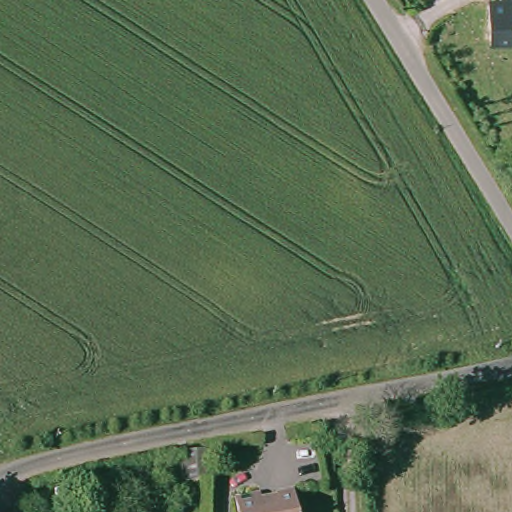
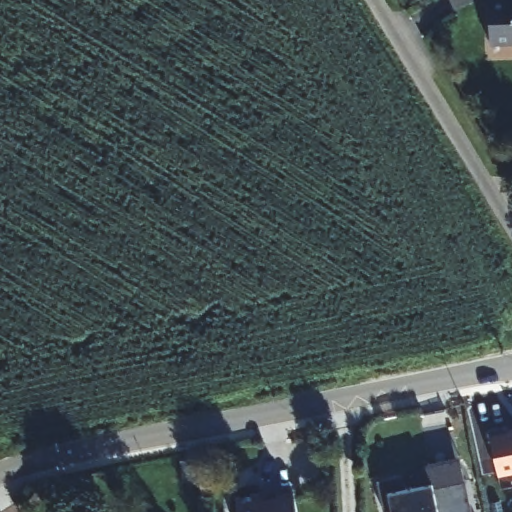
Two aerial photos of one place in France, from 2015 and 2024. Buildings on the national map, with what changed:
unchanged [(488,0),(512,0),(512,40),(490,41),(488,0)]
new [(512,429),(512,473),(500,476),(490,435),(512,429)]
new [(380,495),(377,481),(401,475),(404,486),(431,480),(432,485),(464,479),(471,512),(393,512),(388,493),(380,495)]
unchanged [(261,487),(262,493),(295,488),(300,512),(240,512),(235,491),(261,487)]

